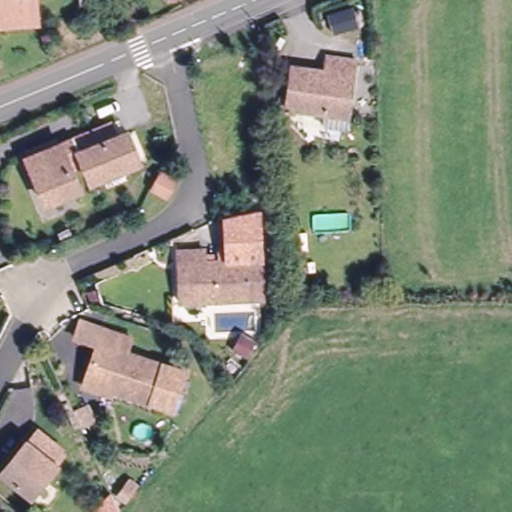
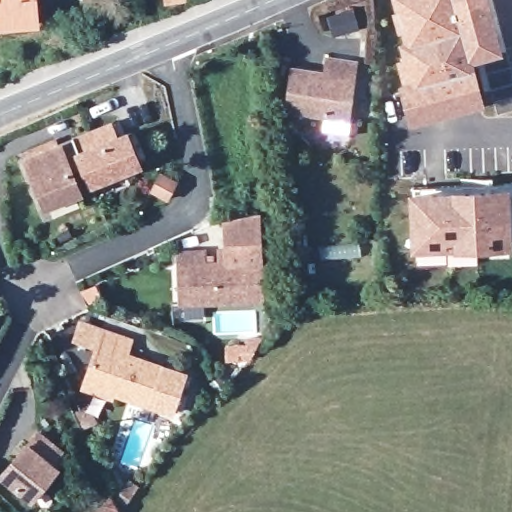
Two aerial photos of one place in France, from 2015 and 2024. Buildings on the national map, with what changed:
unchanged [(0,25),(0,0),(34,0),(36,21),(0,25)]
unchanged [(93,14),(91,0),(122,0),(123,10),(93,14)]
new [(505,50),(475,58),(485,102),(409,122),(396,55),(400,54),(397,38),(400,37),(392,0),(492,0),(505,50)]
new [(354,7),(360,28),(331,35),(325,15),(354,7)]
unchanged [(352,70),(347,113),(290,107),(293,68),(325,72),(327,54),(354,58),(352,70)]
unchanged [(96,127),(104,124),(110,139),(120,135),(131,164),(85,183),(77,164),(64,170),(72,191),(40,205),(21,158),(85,132),(96,127)]
unchanged [(166,196),(150,187),(160,169),(177,179),(166,196)]
new [(511,183),(512,204),(512,246),(477,249),(477,264),(415,265),(415,248),(410,248),(408,189),(478,184),(511,183)]
unchanged [(260,209),(263,246),(246,245),(247,260),(235,260),(224,260),(221,219),(260,209)]
new [(359,240),(361,256),(322,259),(320,244),(359,240)]
unchanged [(182,260),(182,246),(209,246),(209,260),(224,260),(235,260),(247,260),(246,245),(263,246),(263,300),(192,300),(182,300),(182,260)]
unchanged [(125,361),(184,382),(173,414),(86,383),(98,349),(76,341),(82,325),(104,333),(131,343),(125,361)]
unchanged [(60,447),(50,459),(56,464),(31,495),(2,472),(37,429),(60,447)]

